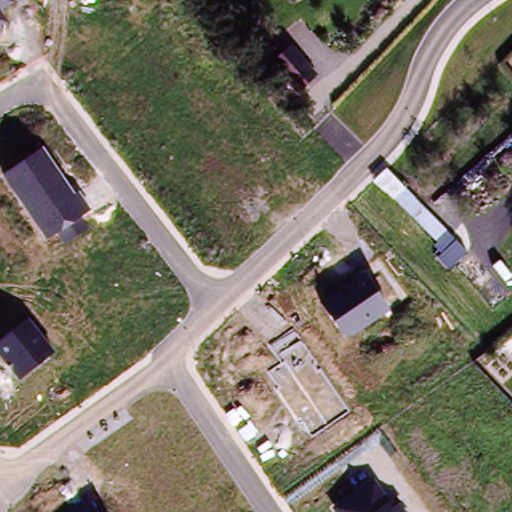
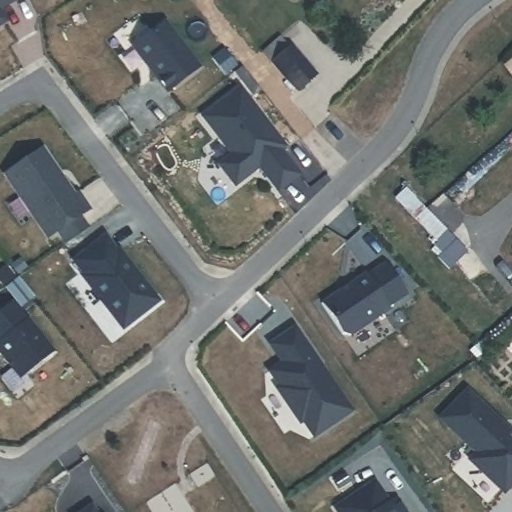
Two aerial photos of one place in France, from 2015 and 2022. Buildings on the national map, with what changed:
unchanged [(0,0),(12,0),(13,2),(0,11),(0,0)]
unchanged [(0,27),(0,13),(7,24),(0,27)]
new [(165,20),(199,67),(166,91),(131,43),(165,20)]
unchanged [(313,73),(294,90),(271,64),(290,46),(313,73)]
new [(237,87),(282,146),(278,149),(297,175),(275,191),(257,167),(233,185),(216,163),(229,154),(200,117),(237,87)]
unchanged [(3,175),(43,147),(76,194),(79,192),(91,210),(81,217),(88,227),(65,241),(57,231),(46,239),(3,175)]
unchanged [(448,268),(437,256),(441,253),(433,244),(437,242),(394,199),(374,182),(386,169),(447,230),(466,252),(448,268)]
new [(99,239),(111,252),(113,251),(155,300),(121,330),(79,281),(80,279),(68,265),(99,239)]
new [(387,263),(407,295),(387,310),(374,289),(367,277),(387,263)]
unchanged [(353,337),(342,334),(321,304),(366,275),(387,310),(353,337)]
unchanged [(0,356),(0,343),(29,319),(54,351),(20,380),(0,356)]
new [(354,413),(313,441),(303,424),(299,427),(274,390),(277,387),(266,370),(278,362),(266,345),(295,326),(354,413)]
new [(436,419),(463,391),(512,438),(512,481),(500,494),(478,473),(466,462),(473,455),(436,419)]
unchanged [(333,507),(374,477),(389,497),(393,496),(405,512),(336,512),(333,507)]
unchanged [(92,508),(95,512),(86,512),(92,508)]

